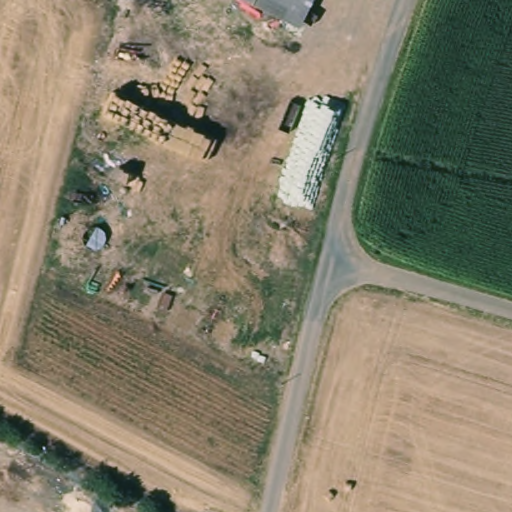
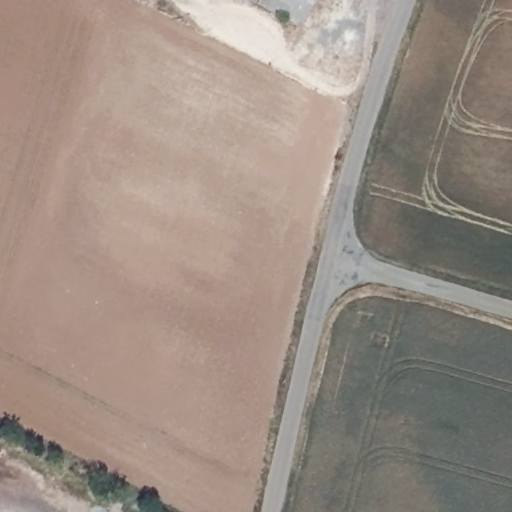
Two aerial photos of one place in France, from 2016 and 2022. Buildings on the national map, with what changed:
unchanged [(246,0),(293,0),(283,19),(246,0)]

